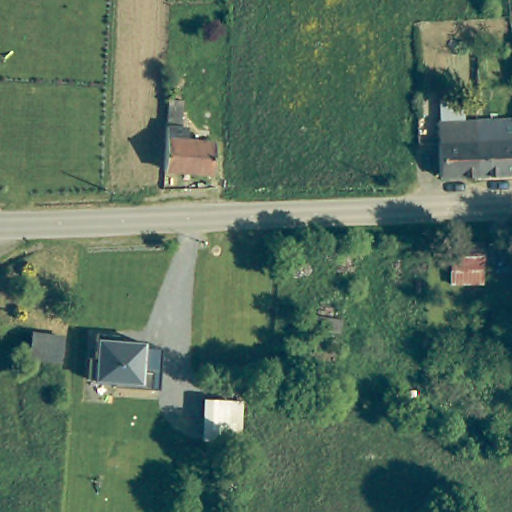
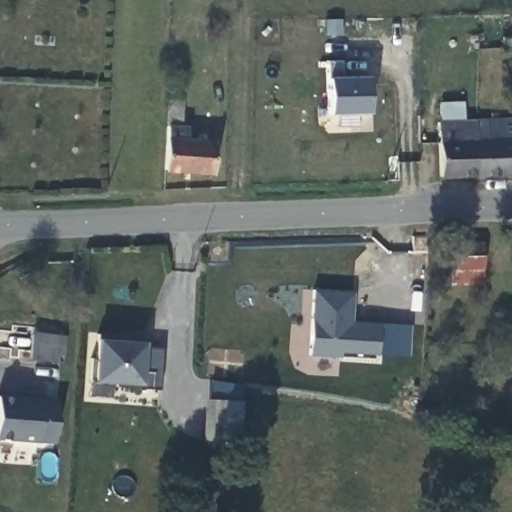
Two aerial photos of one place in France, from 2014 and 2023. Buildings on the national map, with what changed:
unchanged [(512,39),(512,75),(507,75),(507,49),(505,39),(512,39)]
new [(367,112),(329,113),(328,76),(327,61),(340,61),(340,76),(367,76),(367,112)]
unchanged [(468,176),(467,122),(509,120),(510,141),(511,175),(468,176)]
unchanged [(432,178),(431,123),(467,122),(468,176),(432,178)]
unchanged [(179,127),(185,127),(185,142),(208,142),(207,173),(162,171),(164,126),(179,127)]
unchanged [(512,141),(512,175),(511,175),(510,141),(512,141)]
unchanged [(473,245),(476,302),(462,302),(462,285),(443,285),(443,246),(473,245)]
new [(352,321),(378,323),(377,353),(340,351),(341,356),(309,355),(315,290),(353,293),(352,321)]
unchanged [(59,337),(57,363),(27,361),(30,335),(59,337)]
unchanged [(116,387),(117,382),(95,380),(86,379),(87,358),(96,358),(97,338),(144,341),(144,347),(161,348),(159,389),(116,387)]
new [(0,439),(0,394),(41,397),(57,399),(52,444),(0,439)]
unchanged [(203,398),(242,399),(240,441),(202,439),(203,398)]

